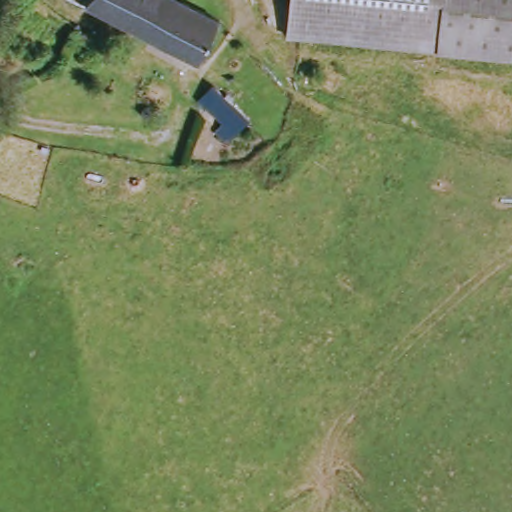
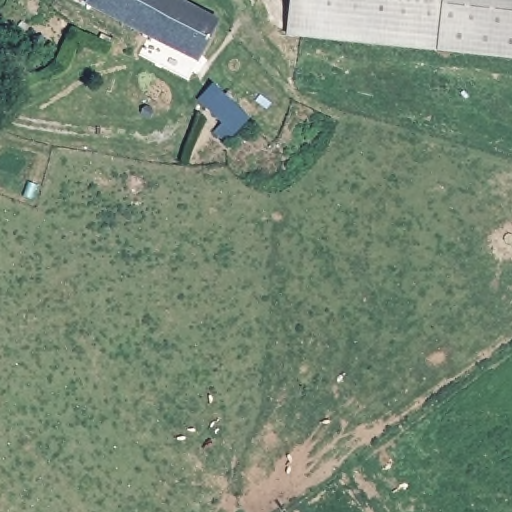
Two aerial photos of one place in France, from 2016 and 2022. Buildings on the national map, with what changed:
unchanged [(230,20),(208,64),(93,4),(86,0),(190,0),(230,20)]
unchanged [(286,39),(290,0),(512,0),(512,60),(286,39)]
unchanged [(220,91),(249,119),(227,141),(217,130),(225,122),(206,106),(220,91)]

